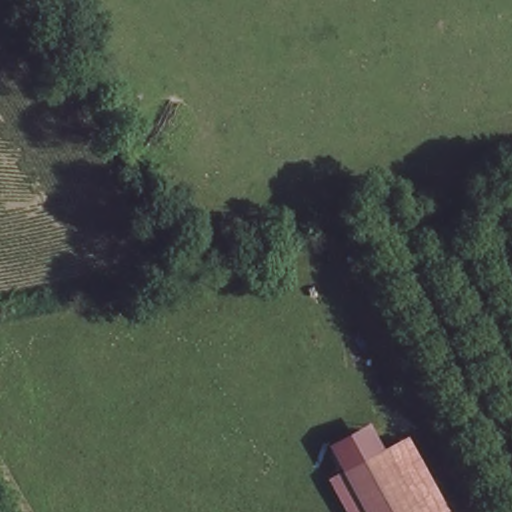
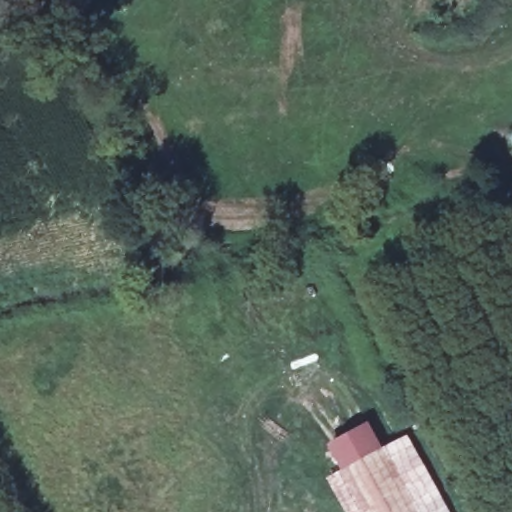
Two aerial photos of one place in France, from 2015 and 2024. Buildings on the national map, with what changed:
unchanged [(374,449),(396,438),(441,512),(406,512),(374,449)]
unchanged [(331,473),(374,449),(406,512),(353,512),(331,473)]
unchanged [(353,512),(336,512),(320,480),(331,473),(353,512)]

